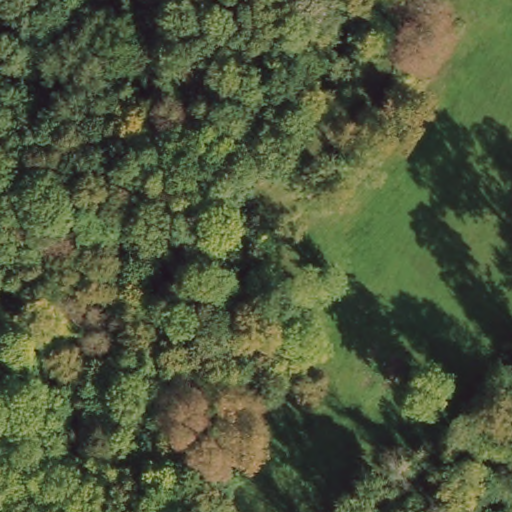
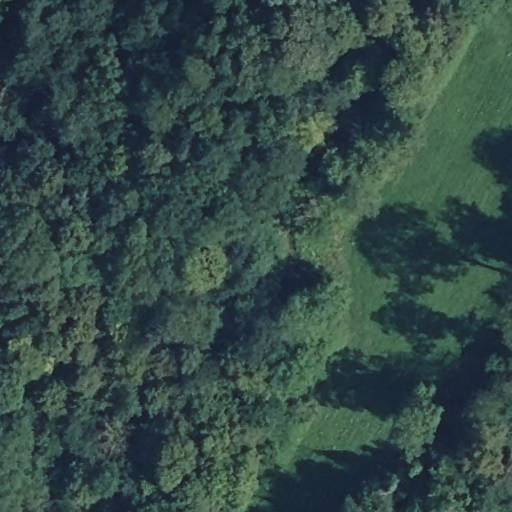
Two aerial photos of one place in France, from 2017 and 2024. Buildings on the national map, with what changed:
[]

